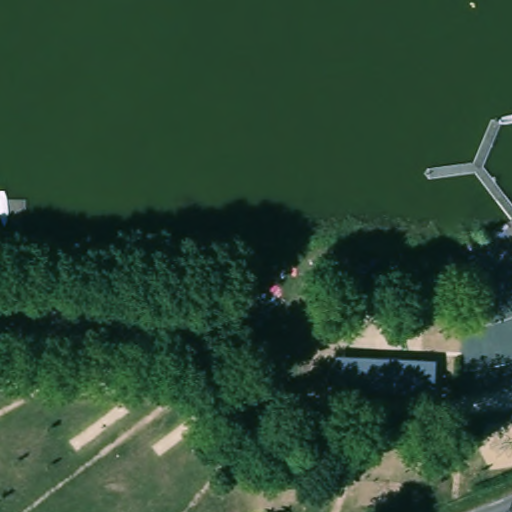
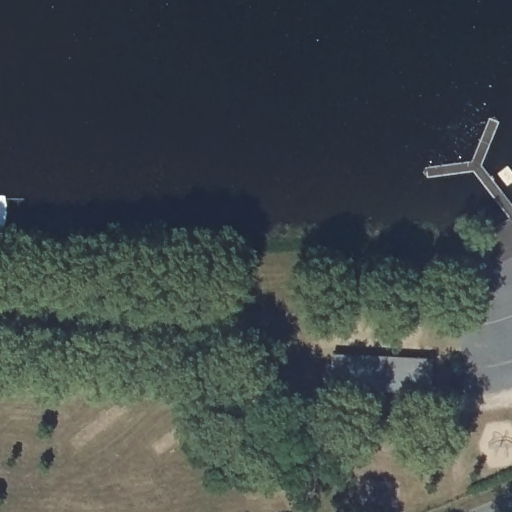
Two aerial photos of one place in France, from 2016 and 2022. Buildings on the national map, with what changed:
unchanged [(435,357),(433,399),(334,395),(335,354),(435,357)]

